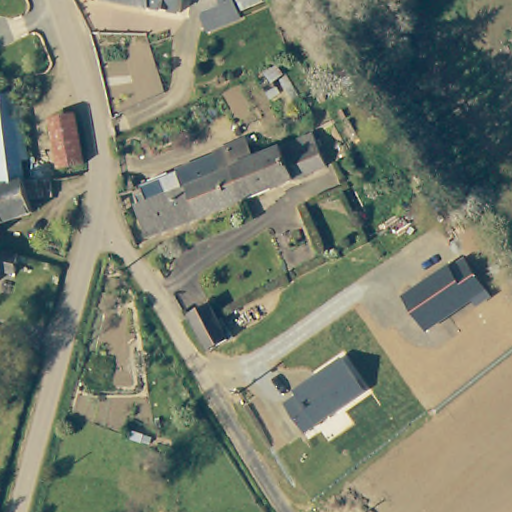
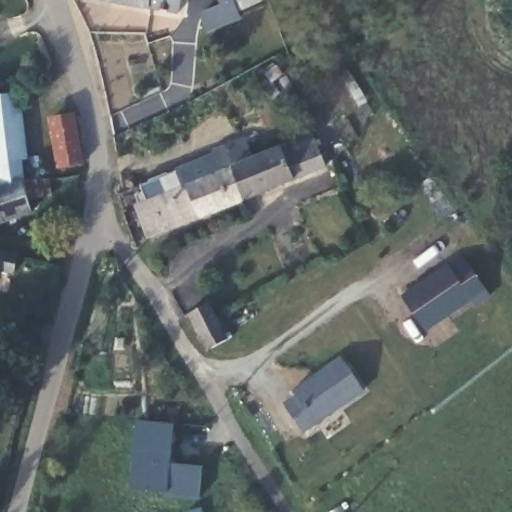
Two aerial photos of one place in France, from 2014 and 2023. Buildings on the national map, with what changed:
unchanged [(119,7),(75,0),(74,0),(120,0),(119,7)]
unchanged [(175,16),(119,7),(120,0),(178,0),(175,16)]
unchanged [(194,18),(221,7),(218,0),(259,0),(260,2),(198,27),(194,18)]
unchanged [(12,94),(13,108),(20,107),(26,158),(20,159),(22,180),(0,185),(0,96),(12,94)]
unchanged [(58,168),(50,122),(73,119),(79,165),(58,168)]
unchanged [(237,188),(231,171),(254,162),(311,140),(325,171),(243,204),(237,188)]
unchanged [(231,171),(237,188),(243,204),(147,244),(134,212),(139,210),(134,200),(142,198),(139,190),(247,146),(254,162),(231,171)]
unchanged [(22,180),(51,180),(51,197),(28,199),(32,213),(0,223),(0,185),(22,180)]
unchanged [(13,273),(0,270),(0,254),(17,257),(13,273)]
unchanged [(449,262),(451,267),(466,257),(492,296),(476,307),(470,301),(425,332),(401,296),(449,262)]
unchanged [(226,339),(207,349),(188,313),(207,303),(226,339)]
unchanged [(363,390),(302,431),(284,404),(297,395),(292,389),(339,357),(363,390)]
new [(136,420),(173,422),(170,463),(203,464),(200,499),(164,496),(163,492),(130,490),(136,420)]

